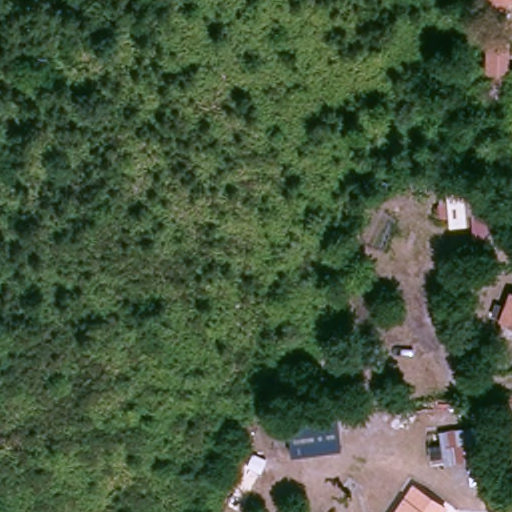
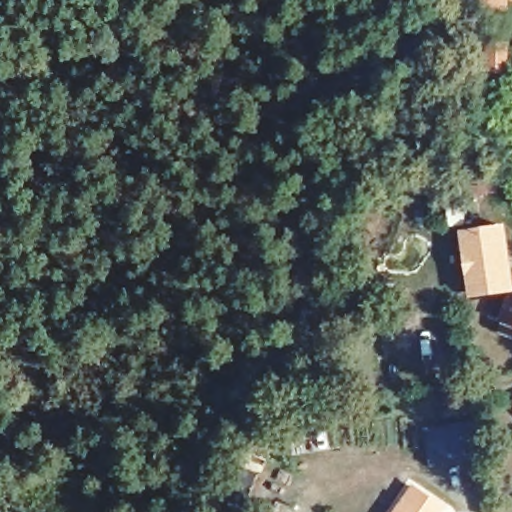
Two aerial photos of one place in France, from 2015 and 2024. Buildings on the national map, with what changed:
unchanged [(503,44),(508,71),(491,73),(486,47),(503,44)]
new [(506,224),(512,264),(512,292),(469,298),(460,231),(506,224)]
unchanged [(510,295),(512,295),(512,324),(501,320),(510,295)]
unchanged [(466,427),(472,460),(430,467),(424,433),(466,427)]
unchanged [(443,512),(397,512),(413,488),(445,509),(443,512)]

